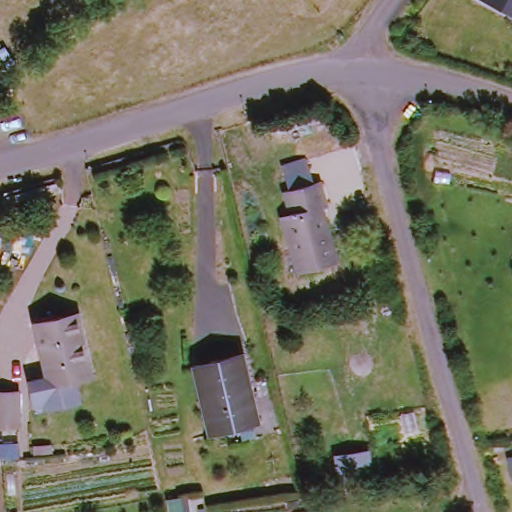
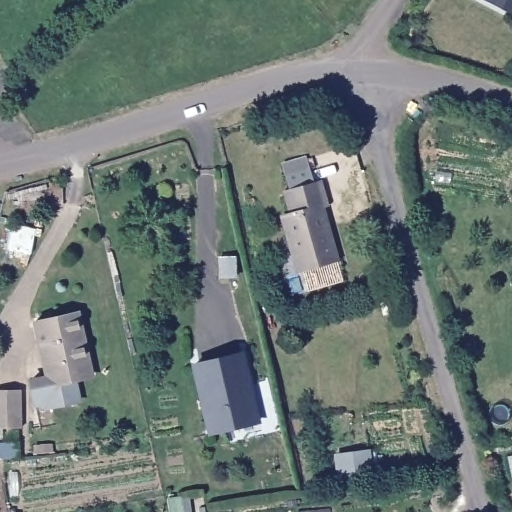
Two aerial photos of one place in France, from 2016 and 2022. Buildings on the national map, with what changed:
unchanged [(488,0),(512,0),(512,12),(512,11),(488,0)]
unchanged [(286,215),(291,214),(286,190),(291,189),(286,170),(308,165),(312,185),(321,182),(327,206),(319,209),(333,260),(291,270),(285,240),(279,216),(286,215)]
unchanged [(76,362),(65,365),(70,386),(37,393),(36,388),(28,390),(22,366),(40,362),(28,308),(70,297),(79,333),(85,360),(76,362)]
unchanged [(252,420),(202,430),(188,362),(237,352),(252,420)]
unchanged [(5,390),(12,390),(14,423),(7,423),(0,424),(0,390),(5,390)]
unchanged [(18,437),(17,455),(0,455),(0,437),(18,437)]

